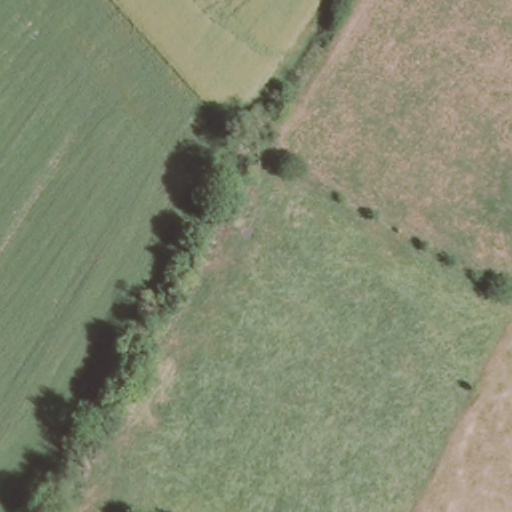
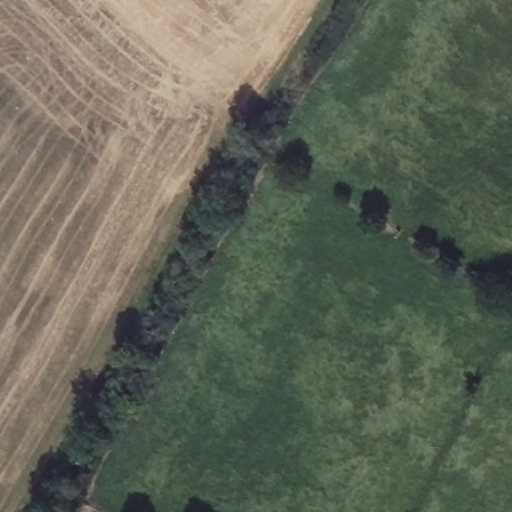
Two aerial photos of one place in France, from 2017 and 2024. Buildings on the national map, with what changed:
[]

